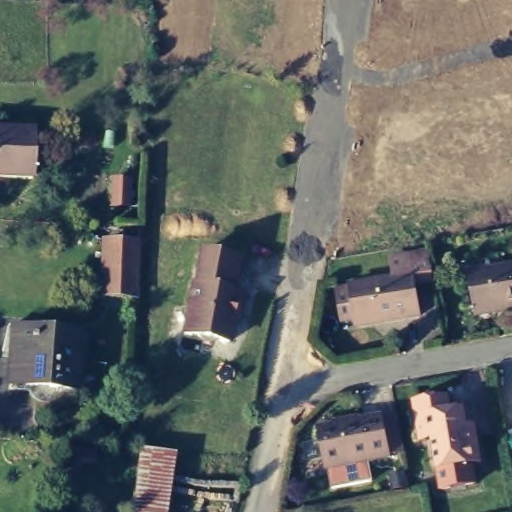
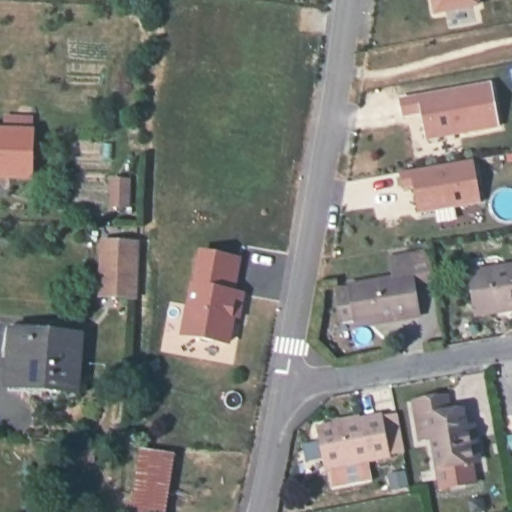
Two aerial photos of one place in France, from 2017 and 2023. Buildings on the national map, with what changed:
new [(480,6),(436,14),(434,0),(479,0),(480,6)]
new [(490,82),(499,125),(426,139),(421,113),(402,117),(399,100),(490,82)]
unchanged [(29,174),(0,173),(0,127),(31,128),(29,174)]
new [(473,158),(481,201),(420,212),(415,186),(404,189),(400,171),(473,158)]
unchanged [(131,214),(107,211),(107,179),(132,180),(131,214)]
unchanged [(411,277),(417,310),(382,316),(381,313),(355,317),(355,315),(339,317),(332,283),(390,272),(387,252),(427,245),(432,273),(411,277)]
unchanged [(105,301),(107,247),(140,250),(137,304),(105,301)]
unchanged [(179,335),(193,249),(240,255),(234,290),(245,292),(241,320),(236,319),(231,346),(179,335)]
unchanged [(512,264),(512,306),(504,307),(504,303),(475,308),(469,271),(512,264)]
unchanged [(85,328),(81,378),(15,371),(18,323),(85,328)]
unchanged [(424,430),(416,396),(445,390),(449,405),(467,401),(477,454),(439,461),(434,435),(425,437),(424,430)]
unchanged [(326,465),(318,425),(380,413),(380,414),(394,411),(400,448),(387,450),(387,452),(326,465)]
unchanged [(140,445),(176,450),(168,512),(156,512),(132,506),(140,445)]

